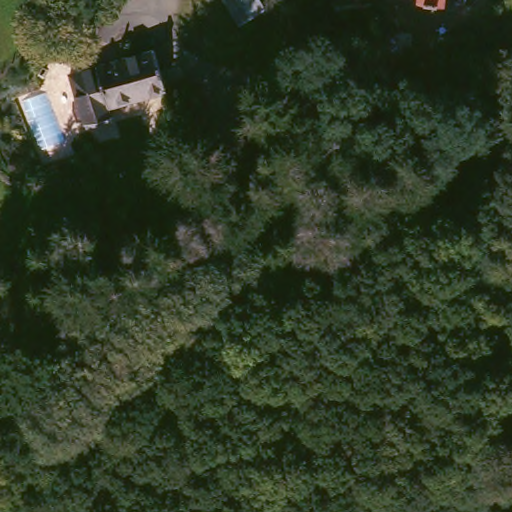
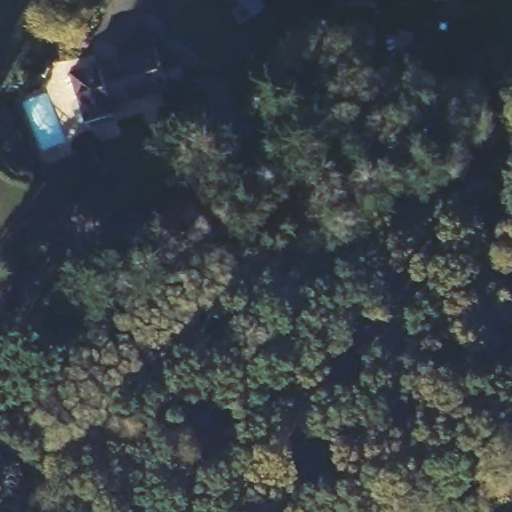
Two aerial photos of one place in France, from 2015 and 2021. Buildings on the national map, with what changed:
unchanged [(463,5),(424,0),(464,0),(463,5)]
unchanged [(108,104),(110,111),(85,120),(70,70),(152,45),(165,86),(108,104)]

